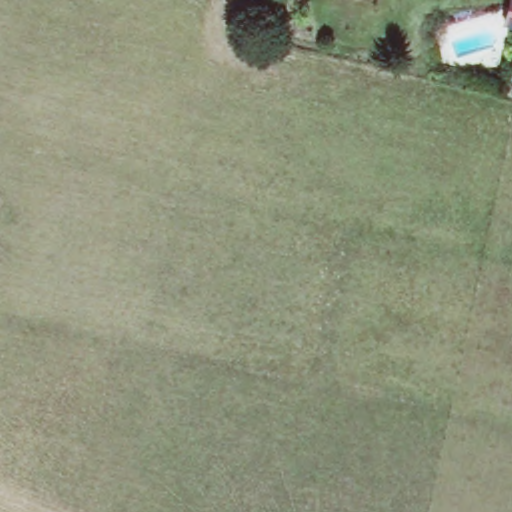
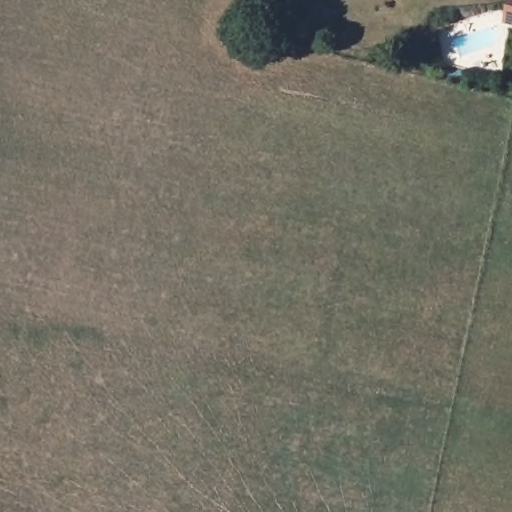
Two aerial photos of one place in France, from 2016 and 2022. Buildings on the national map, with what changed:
unchanged [(512,23),(508,22),(512,5),(512,23)]

